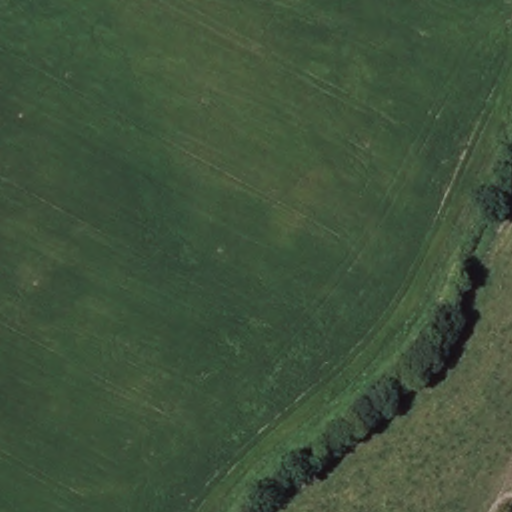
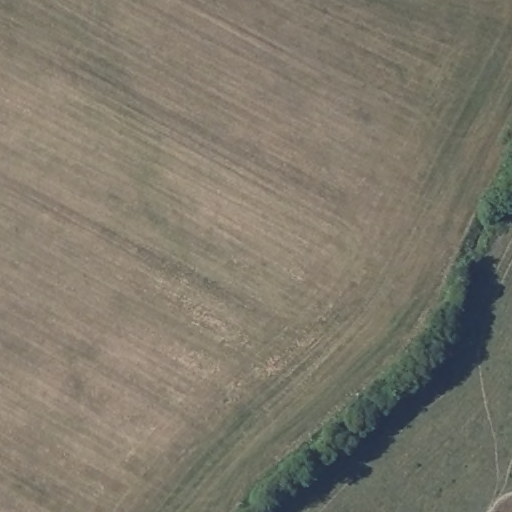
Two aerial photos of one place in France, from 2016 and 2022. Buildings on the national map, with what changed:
[]

